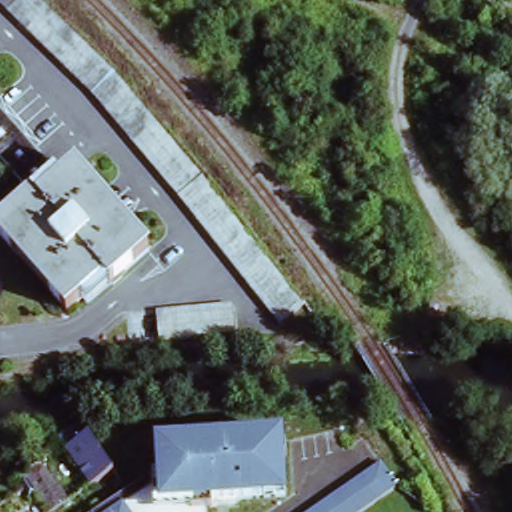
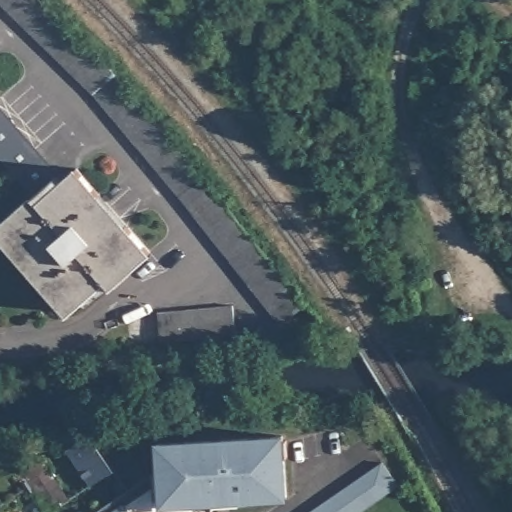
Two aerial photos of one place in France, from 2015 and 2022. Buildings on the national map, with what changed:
unchanged [(114,65),(300,302),(276,320),(132,136),(93,87),(2,0),(47,0),(114,65)]
unchanged [(63,182),(77,172),(99,197),(95,202),(118,227),(122,225),(145,252),(110,286),(105,282),(65,315),(45,292),(50,287),(24,256),(19,261),(0,239),(0,226),(34,199),(2,160),(0,157),(0,108),(63,182)]
unchanged [(158,313),(232,305),(235,335),(162,343),(158,313)]
unchanged [(93,435),(116,470),(92,487),(68,451),(93,435)]
unchanged [(157,442),(286,436),(288,496),(210,501),(211,512),(97,512),(160,476),(157,442)]
unchanged [(27,486),(22,478),(29,473),(27,472),(45,461),(69,497),(52,508),(42,493),(35,498),(27,486)]
unchanged [(396,487),(362,512),(309,512),(380,466),(396,487)]

